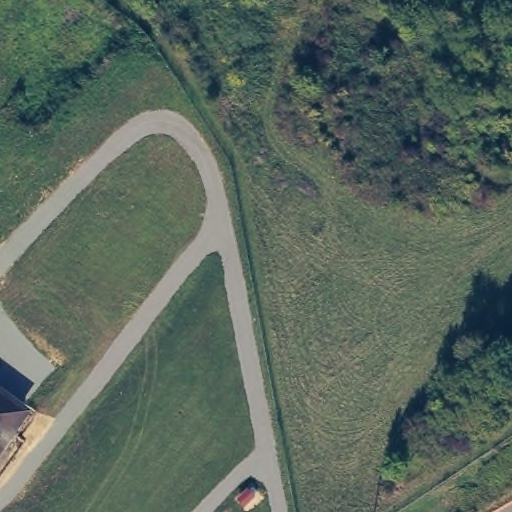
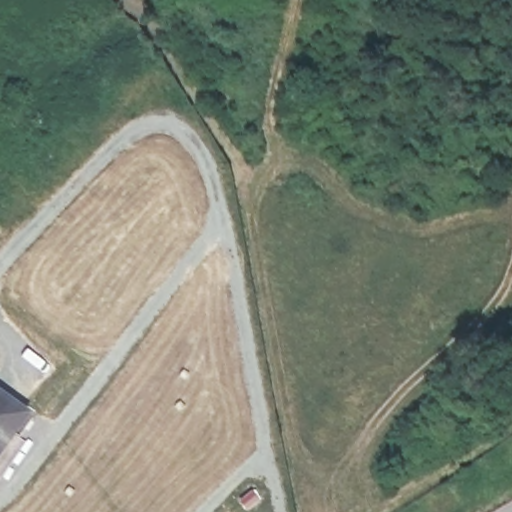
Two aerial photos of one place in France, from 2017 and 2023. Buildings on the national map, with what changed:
unchanged [(25,412),(0,447),(0,396),(25,412)]

